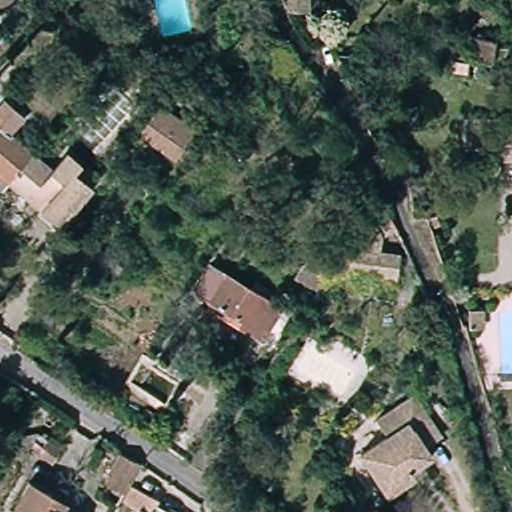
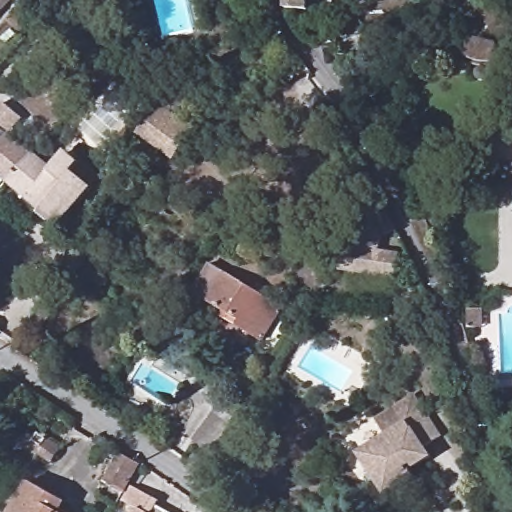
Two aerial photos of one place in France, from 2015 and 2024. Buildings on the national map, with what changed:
unchanged [(0,13),(0,0),(12,0),(0,13)]
unchanged [(286,0),(310,0),(311,8),(289,10),(286,0)]
unchanged [(12,137),(32,152),(6,189),(0,196),(0,104),(24,121),(12,137)]
unchanged [(186,132),(167,161),(134,139),(155,108),(186,132)]
unchanged [(484,158),(483,126),(512,126),(512,158),(484,158)]
unchanged [(32,152),(53,168),(63,154),(78,164),(69,179),(88,190),(60,231),(6,189),(32,152)]
unchanged [(363,218),(389,209),(398,225),(398,227),(383,234),(381,246),(402,250),(398,277),(334,267),(363,218)]
unchanged [(243,247),(230,237),(239,224),(251,233),(243,247)]
unchanged [(310,252),(331,267),(323,281),(301,264),(310,252)]
unchanged [(267,342),(251,335),(226,323),(230,313),(202,298),(186,322),(174,316),(204,265),(271,299),(284,305),(267,342)]
unchanged [(482,311),(483,327),(464,327),(464,311),(482,311)]
unchanged [(181,465),(196,441),(206,426),(201,421),(214,401),(227,382),(249,398),(215,453),(199,477),(181,465)]
unchanged [(359,456),(387,437),(376,420),(415,395),(444,438),(428,449),(435,460),(414,474),(418,481),(387,500),(359,456)]
unchanged [(35,435),(60,451),(48,467),(32,457),(33,453),(28,450),(27,450),(12,454),(9,440),(35,435)]
unchanged [(114,502),(117,498),(95,485),(113,452),(136,466),(124,487),(148,503),(144,512),(130,512),(114,502)]
unchanged [(58,512),(59,512),(5,512),(25,478),(65,501),(58,512)]

